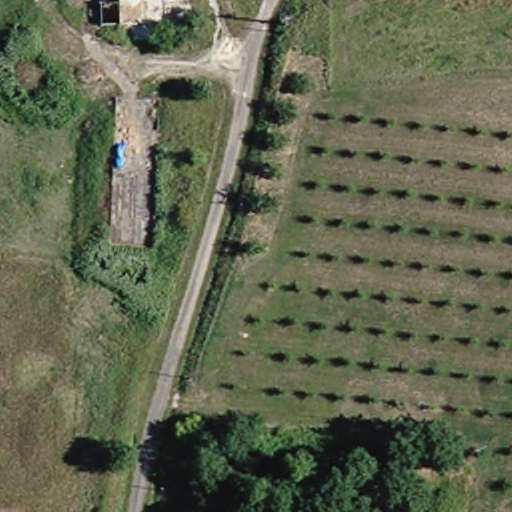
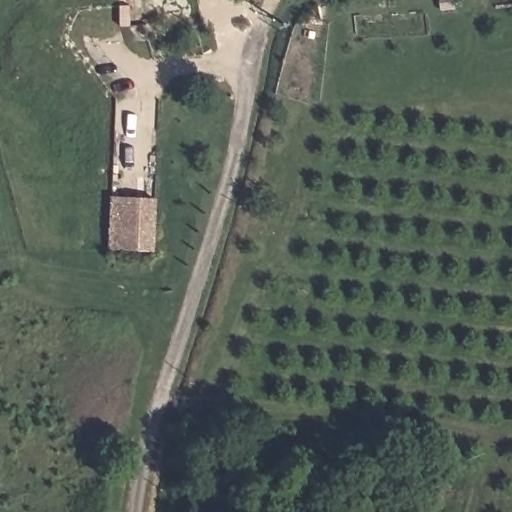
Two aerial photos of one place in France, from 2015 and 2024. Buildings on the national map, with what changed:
new [(110,196),(157,199),(156,252),(110,250),(110,196)]

